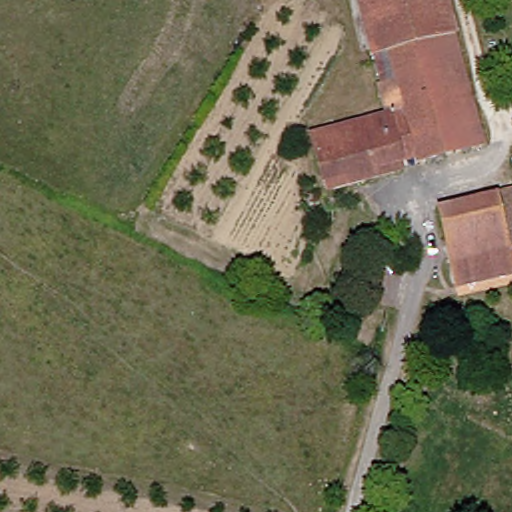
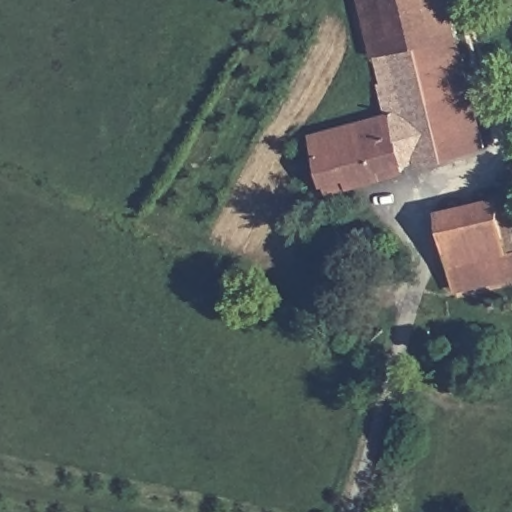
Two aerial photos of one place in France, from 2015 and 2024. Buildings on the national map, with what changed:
unchanged [(360,0),(451,0),(461,41),(381,64),(377,60),(360,0)]
unchanged [(461,41),(496,150),(424,168),(423,158),(384,168),(384,178),(350,187),(348,176),(323,182),(309,136),(412,110),(406,83),(389,85),(381,64),(461,41)]
unchanged [(460,284),(444,205),(512,194),(512,273),(460,284)]

